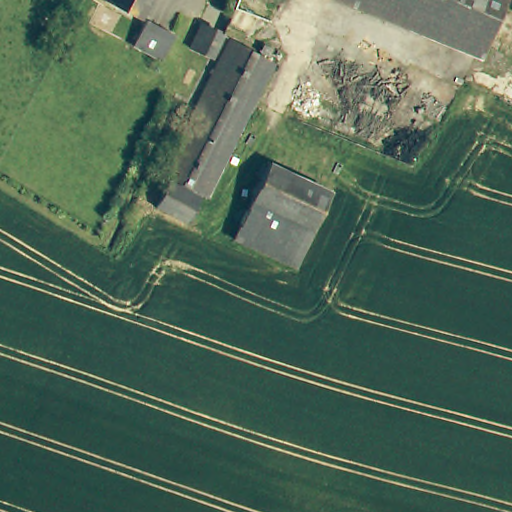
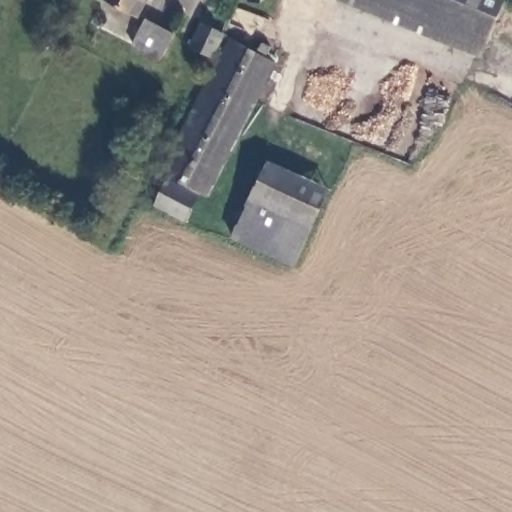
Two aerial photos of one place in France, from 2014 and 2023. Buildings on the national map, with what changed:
unchanged [(115,0),(146,0),(140,12),(115,0)]
unchanged [(381,0),(507,0),(486,45),(381,0)]
unchanged [(173,27),(161,52),(134,41),(146,16),(173,27)]
unchanged [(230,29),(218,53),(195,42),(207,17),(230,29)]
unchanged [(280,57),(210,190),(169,170),(236,35),(280,57)]
unchanged [(256,195),(274,158),(332,186),(315,224),(256,195)]
unchanged [(201,191),(187,220),(155,205),(170,176),(201,191)]
unchanged [(315,224),(298,260),(239,234),(256,195),(315,224)]

